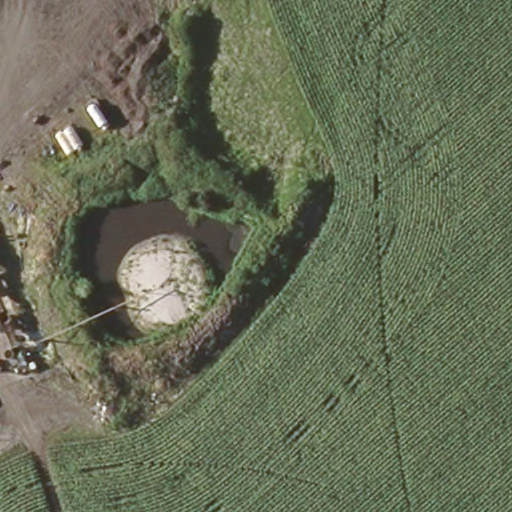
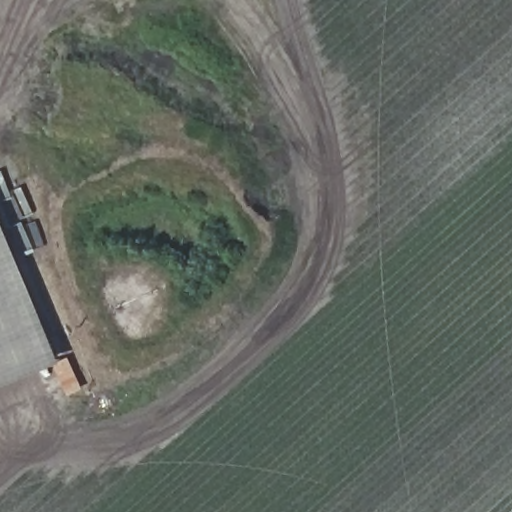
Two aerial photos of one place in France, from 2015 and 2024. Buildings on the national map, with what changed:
new [(64,361),(0,388),(0,208),(64,361)]

